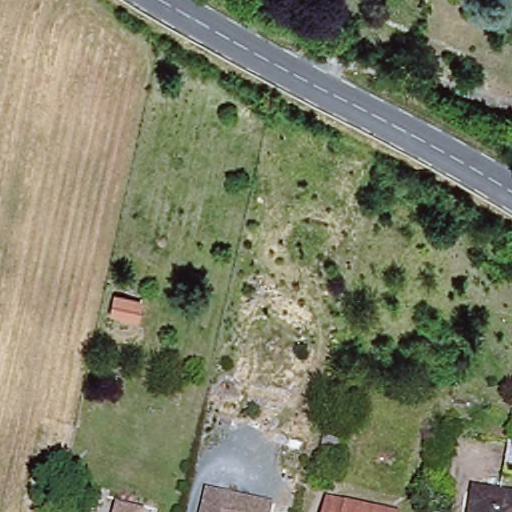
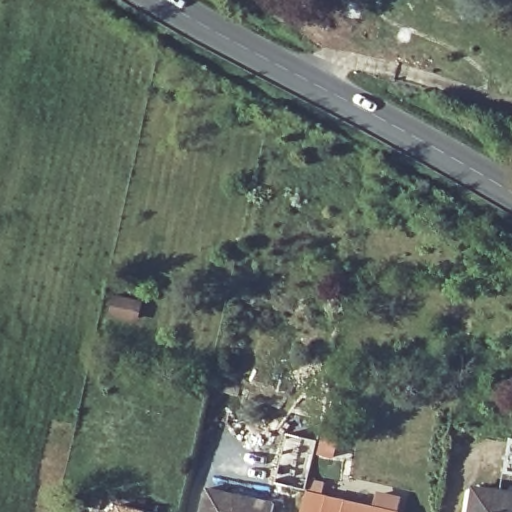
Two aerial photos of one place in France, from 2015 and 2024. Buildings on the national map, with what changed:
unchanged [(512,443),(512,473),(502,472),(507,442),(512,443)]
unchanged [(210,485),(277,502),(275,512),(203,512),(210,485)]
unchanged [(476,488),(512,493),(512,512),(473,512),(476,488)]
unchanged [(331,496),(396,512),(327,512),(331,496)]
unchanged [(115,508),(140,512),(115,512),(115,508)]

